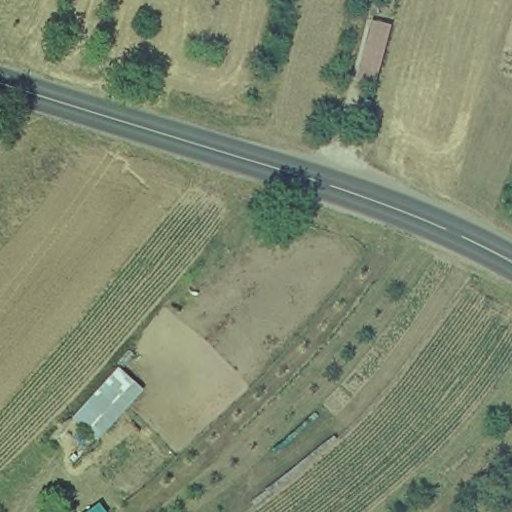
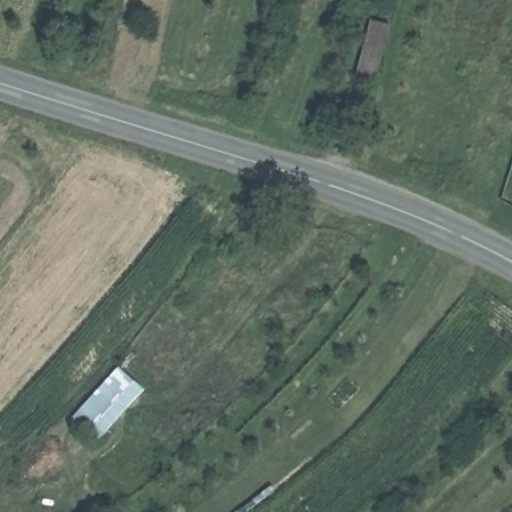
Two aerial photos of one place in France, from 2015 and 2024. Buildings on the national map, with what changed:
unchanged [(388,47),(379,82),(364,78),(373,43),(388,47)]
unchanged [(101,448),(72,420),(116,368),(143,391),(101,448)]

